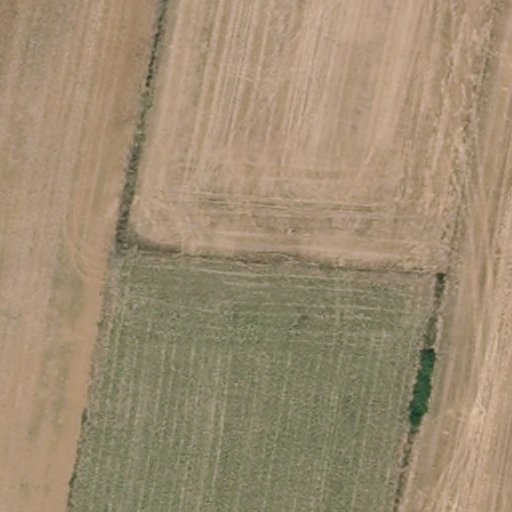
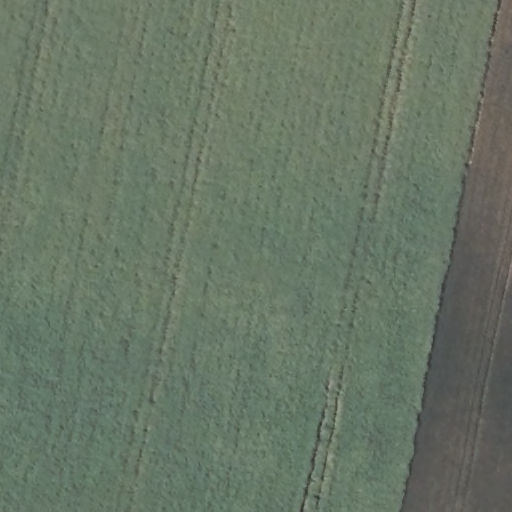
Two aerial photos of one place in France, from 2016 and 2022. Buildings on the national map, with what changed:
[]

